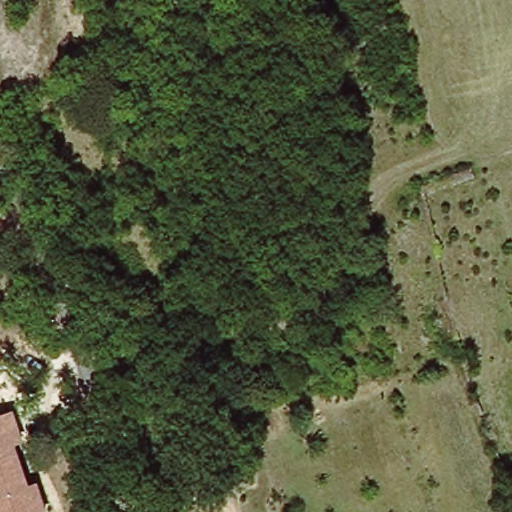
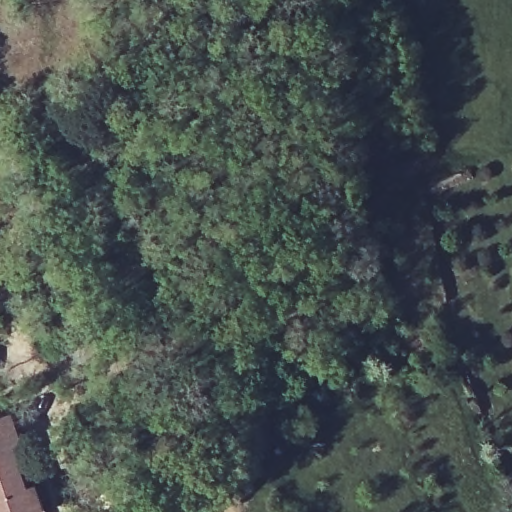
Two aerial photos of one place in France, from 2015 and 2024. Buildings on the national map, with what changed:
unchanged [(22,441),(12,444),(27,489),(37,486),(44,512),(0,512),(0,419),(14,413),(22,441)]

